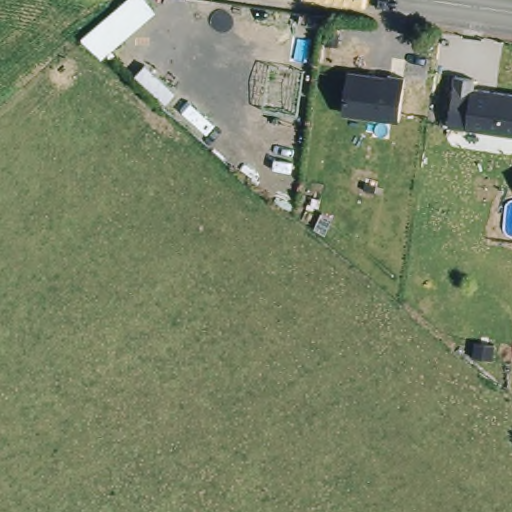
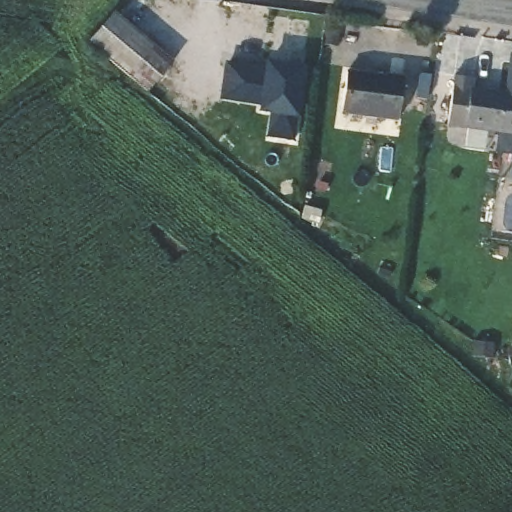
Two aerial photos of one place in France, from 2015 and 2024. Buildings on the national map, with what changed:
unchanged [(114,12),(173,62),(148,95),(89,44),(114,12)]
new [(267,136),(269,115),(259,112),(260,105),(221,99),(225,62),(266,67),(266,61),(305,67),(298,119),(294,139),(267,136)]
unchanged [(343,110),(348,70),(404,75),(400,117),(343,110)]
unchanged [(446,122),(451,73),(477,76),(476,85),(512,90),(512,132),(446,122)]

